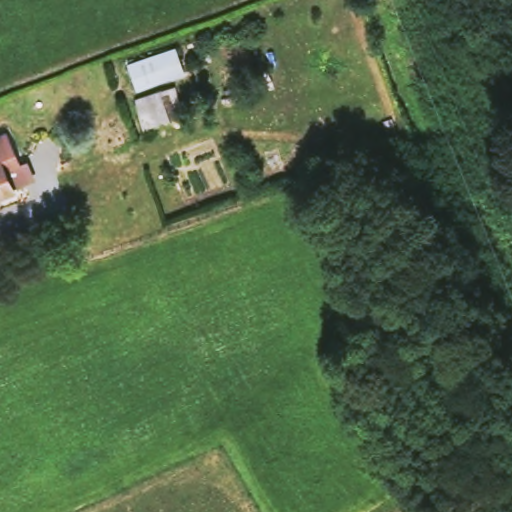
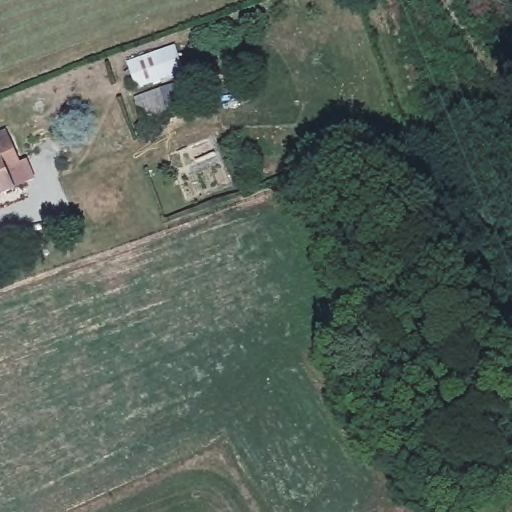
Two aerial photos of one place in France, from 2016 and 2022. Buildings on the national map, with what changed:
unchanged [(175,37),(184,70),(133,88),(125,56),(175,37)]
unchanged [(176,78),(185,113),(142,128),(131,94),(176,78)]
unchanged [(28,181),(0,194),(0,128),(6,125),(28,181)]

